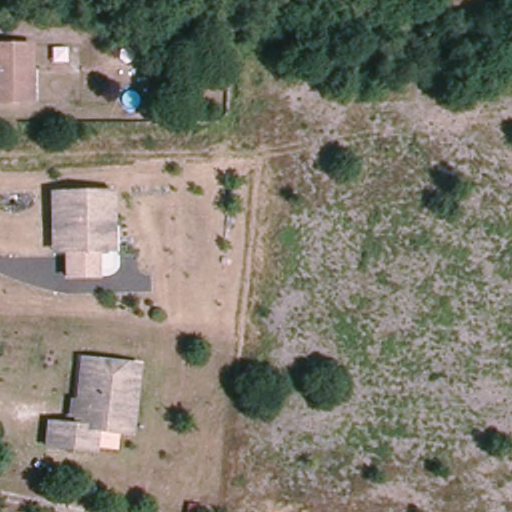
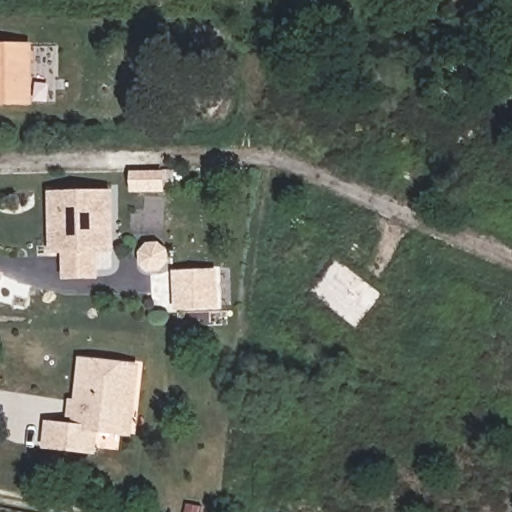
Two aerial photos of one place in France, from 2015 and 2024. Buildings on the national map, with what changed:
unchanged [(34,48),(33,101),(0,101),(0,46),(34,48)]
unchanged [(99,251),(100,278),(86,278),(69,278),(68,252),(55,253),(55,212),(54,195),(94,194),(114,194),(115,224),(115,250),(99,251)]
new [(217,269),(220,308),(175,309),(174,272),(217,269)]
unchanged [(45,425),(72,429),(84,363),(139,373),(133,412),(129,439),(114,437),(95,434),(90,455),(70,452),(43,447),(45,425)]

